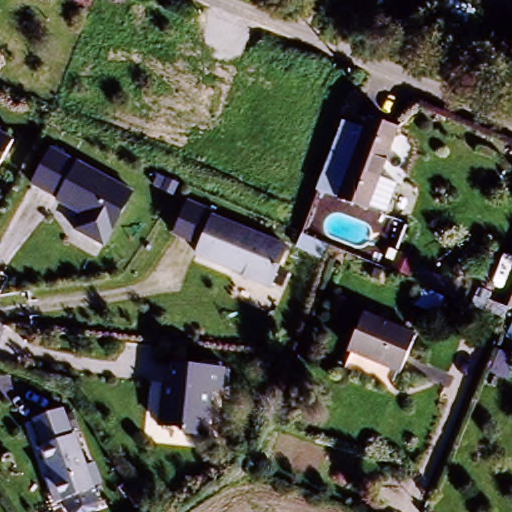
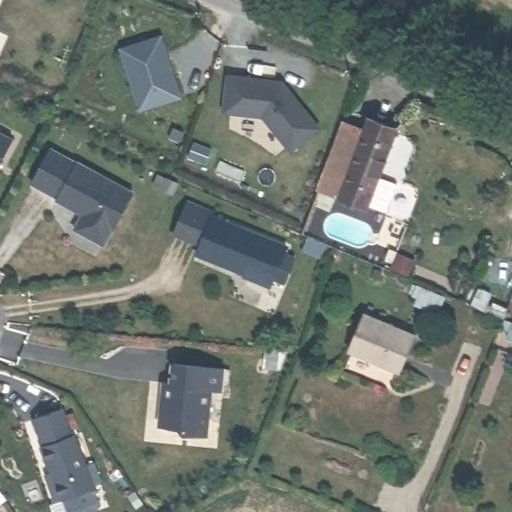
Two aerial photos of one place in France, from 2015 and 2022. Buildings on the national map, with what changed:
unchanged [(53,0),(68,0),(65,5),(53,0)]
new [(162,36),(171,60),(184,96),(144,111),(122,50),(150,40),(162,36)]
unchanged [(495,94),(471,83),(477,68),(502,78),(512,54),(512,107),(494,99),(495,94)]
new [(263,118),(222,114),(226,74),(283,80),(322,129),(291,154),(263,118)]
unchanged [(337,194),(322,189),(349,125),(365,132),(369,121),(397,134),(377,178),(395,185),(384,212),(365,205),(363,208),(335,198),(337,194)]
unchanged [(4,132),(16,139),(0,171),(0,127),(3,129),(4,132)]
unchanged [(63,203),(36,188),(53,154),(80,167),(81,164),(136,194),(108,248),(79,232),(86,219),(61,205),(63,203)]
unchanged [(198,248),(171,237),(185,205),(287,250),(271,289),(246,279),(247,277),(195,258),(198,248)]
unchanged [(329,249),(324,261),(299,250),(304,238),(329,249)]
unchanged [(472,320),(461,315),(477,293),(488,298),(472,320)]
unchanged [(364,318),(416,340),(401,375),(349,353),(364,318)]
unchanged [(173,368),(222,372),(221,393),(212,393),(208,435),(203,439),(184,437),(181,429),(160,429),(162,407),(168,401),(169,386),(173,386),(173,368)]
unchanged [(76,436),(96,490),(58,504),(48,477),(52,476),(42,447),(44,447),(35,420),(63,411),(72,437),(76,436)]

